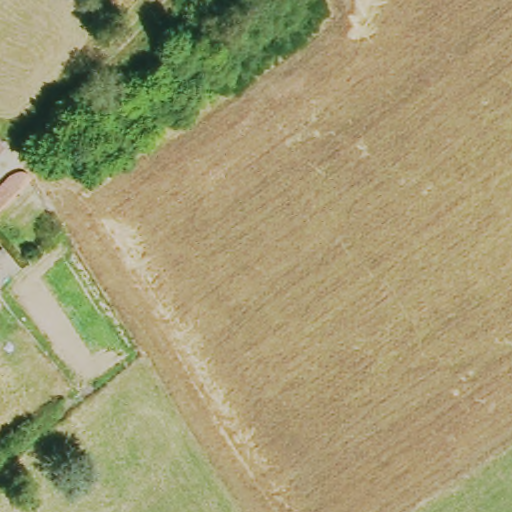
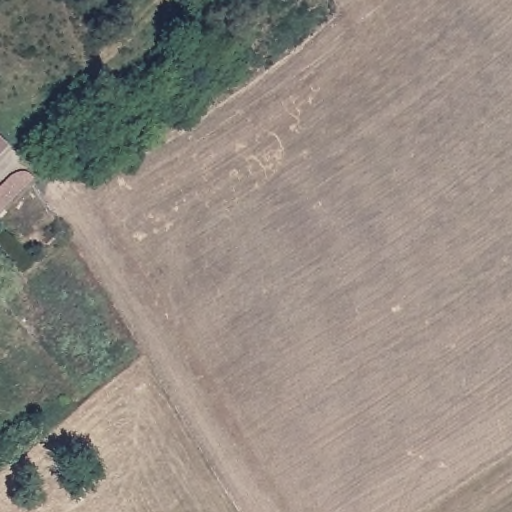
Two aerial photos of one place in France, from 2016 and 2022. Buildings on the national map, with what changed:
unchanged [(0,149),(1,150),(0,152),(0,149)]

